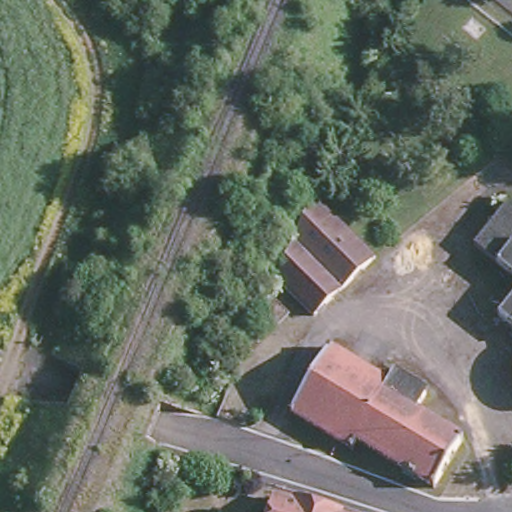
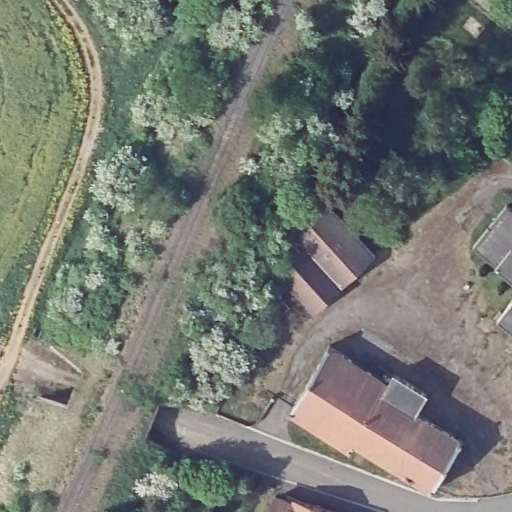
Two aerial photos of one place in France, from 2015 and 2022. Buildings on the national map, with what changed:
unchanged [(375,254),(315,314),(278,274),(314,193),(375,254)]
unchanged [(512,276),(465,248),(493,205),(512,216),(512,276)]
unchanged [(512,300),(512,323),(502,316),(512,300)]
unchanged [(330,348),(377,375),(382,367),(397,375),(398,373),(430,392),(418,411),(466,441),(438,488),(360,441),(354,451),(295,414),(292,413),(302,398),(330,348)]
unchanged [(315,512),(269,512),(275,496),(293,502),(295,498),(317,506),(315,512)]
unchanged [(334,512),(315,512),(317,506),(334,512)]

